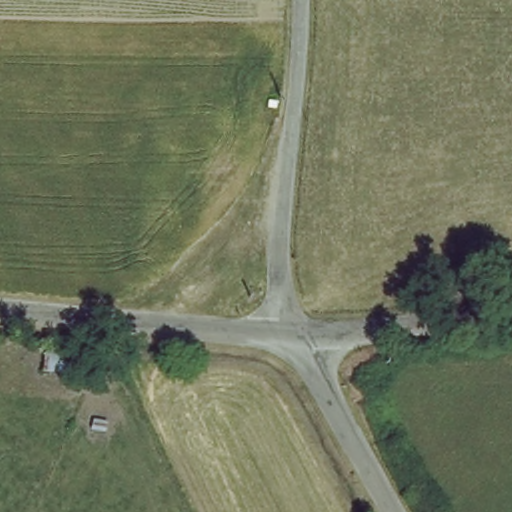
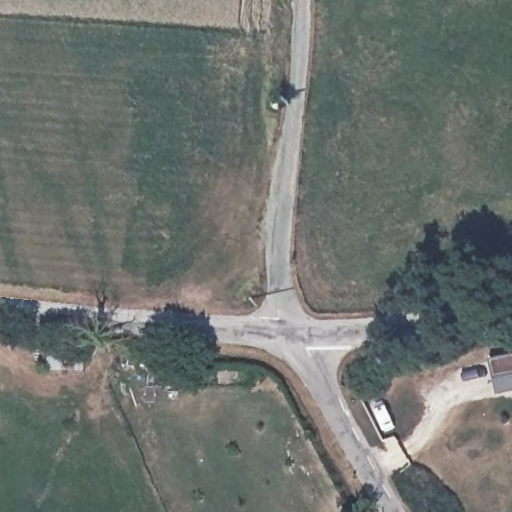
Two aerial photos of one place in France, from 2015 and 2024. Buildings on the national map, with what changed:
unchanged [(45,347),(90,350),(87,374),(44,371),(45,347)]
new [(497,382),(493,362),(512,358),(512,395),(500,398),(497,382)]

